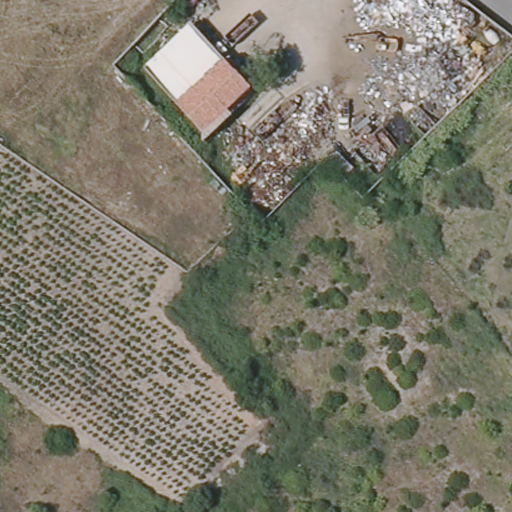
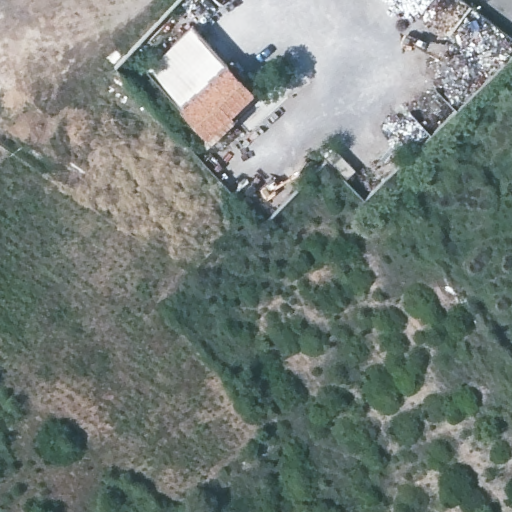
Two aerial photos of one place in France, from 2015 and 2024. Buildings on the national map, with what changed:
unchanged [(201,134),(137,72),(182,27),(246,88),(201,134)]

